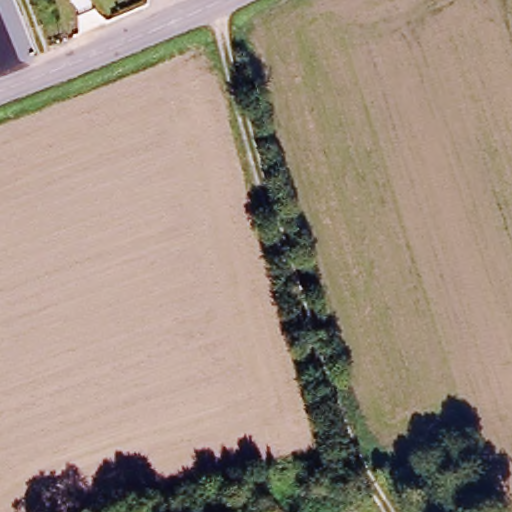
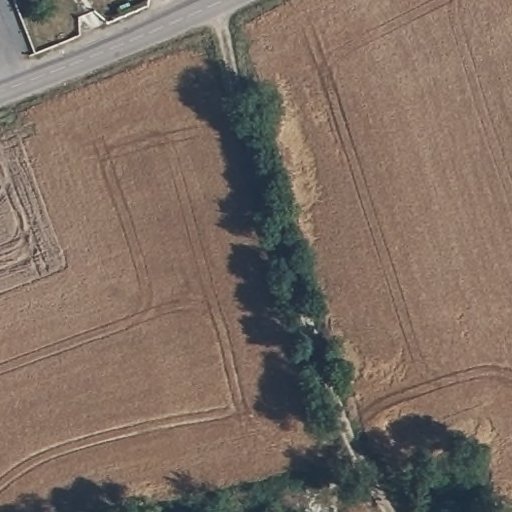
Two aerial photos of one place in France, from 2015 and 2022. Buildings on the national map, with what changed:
[]

